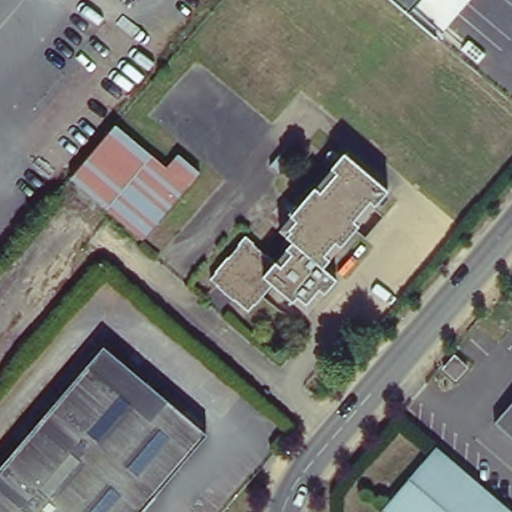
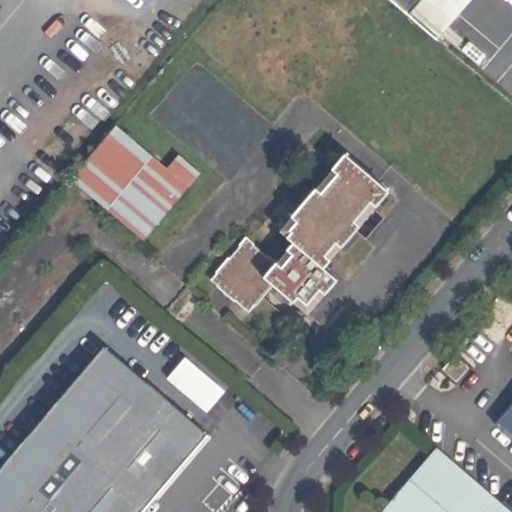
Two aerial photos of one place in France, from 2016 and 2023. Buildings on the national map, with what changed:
unchanged [(423,23),(408,11),(396,0),(436,0),(440,3),(423,23)]
unchanged [(440,3),(436,0),(466,0),(436,35),(423,23),(440,3)]
unchanged [(144,235),(71,174),(115,121),(167,164),(179,150),(200,167),(144,235)]
unchanged [(344,149),(388,187),(323,263),(337,275),(307,311),(272,281),(249,309),(208,275),(245,232),(276,257),(293,237),(279,226),(344,149)]
unchanged [(104,347),(207,435),(141,512),(0,512),(0,470),(104,347)]
unchanged [(456,380),(443,369),(454,356),(467,367),(456,380)]
unchanged [(512,438),(495,424),(512,404),(512,438)]
unchanged [(512,508),(512,512),(391,512),(383,506),(436,443),(512,508)]

